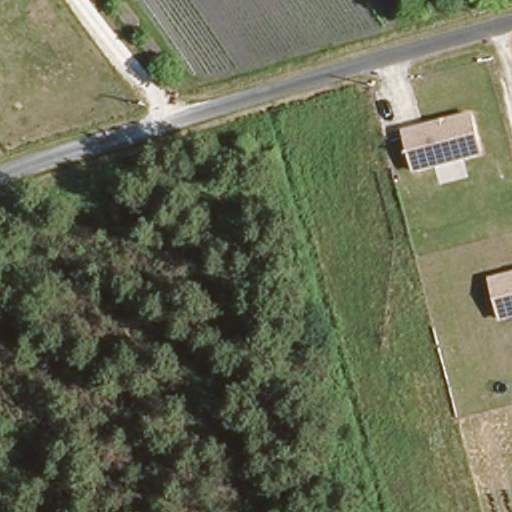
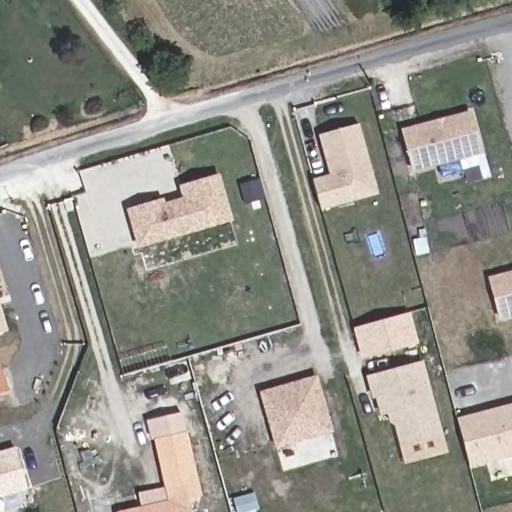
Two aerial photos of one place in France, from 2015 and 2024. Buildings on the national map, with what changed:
unchanged [(412,172),(400,129),(473,111),(484,155),(412,172)]
new [(355,201),(324,210),(316,181),(332,177),(329,164),(321,136),(360,126),(374,178),(379,195),(355,201)]
new [(128,207),(161,196),(163,202),(184,195),(180,183),(217,172),(229,216),(138,242),(128,207)]
unchanged [(487,279),(512,272),(512,318),(498,321),(487,279)]
new [(415,345),(365,358),(357,327),(406,314),(415,345)]
new [(3,327),(0,327),(0,316),(3,327)]
new [(424,363),(442,432),(403,443),(394,410),(383,413),(378,395),(375,396),(370,377),(424,363)]
new [(5,392),(0,393),(0,374),(5,392)]
new [(308,434),(276,443),(260,389),(314,374),(325,409),(330,427),(308,434)]
new [(512,452),(468,463),(456,417),(512,402),(512,452)]
new [(187,495),(140,506),(138,493),(164,488),(153,439),(151,439),(147,421),(182,413),(187,432),(201,498),(188,501),(187,495)]
new [(16,447),(27,486),(0,493),(0,451),(16,447)]
new [(187,495),(191,512),(115,512),(115,511),(187,495)]

